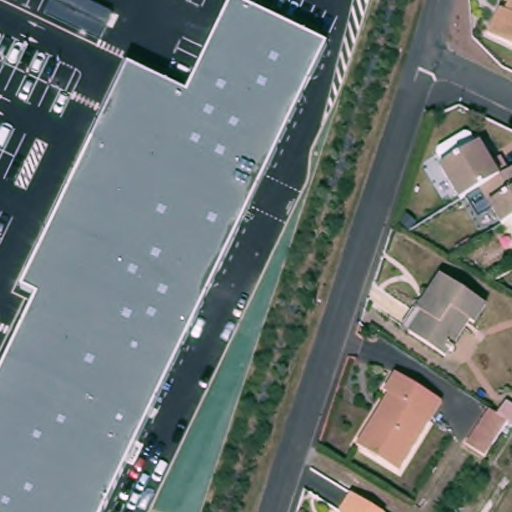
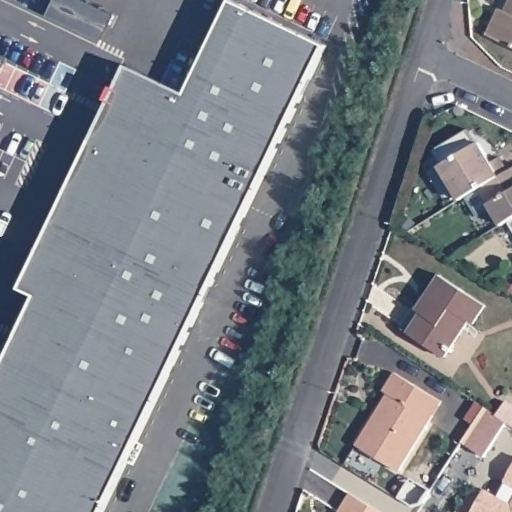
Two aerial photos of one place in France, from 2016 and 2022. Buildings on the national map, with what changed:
unchanged [(84,0),(112,14),(102,41),(44,14),(51,0),(84,0)]
unchanged [(506,9),(511,0),(512,0),(512,44),(488,31),(501,6),(506,9)]
unchanged [(38,298),(21,289),(127,65),(188,95),(232,1),(327,46),(104,512),(0,512),(0,375),(38,298)]
unchanged [(440,167),(443,165),(436,155),(439,150),(464,135),(470,136),(475,146),(478,144),(490,163),(498,158),(506,173),(479,189),(460,201),(440,167)]
unchanged [(512,219),(510,220),(501,226),(479,189),(506,173),(512,169),(512,219)]
unchanged [(512,223),(510,220),(512,219),(512,223)]
unchanged [(421,314),(416,311),(440,276),(485,306),(473,324),(468,322),(444,357),(408,334),(421,314)]
unchanged [(368,427),(373,429),(392,397),(384,391),(394,375),(441,403),(398,471),(356,446),(368,427)]
unchanged [(505,403),(512,407),(512,426),(507,423),(484,458),(470,449),(465,446),(488,411),(492,413),(496,416),(505,403)]
new [(512,472),(512,486),(506,483),(512,472)]
new [(487,489),(511,503),(512,502),(512,512),(473,512),(487,489)]
unchanged [(350,494),(380,512),(339,512),(350,494)]

